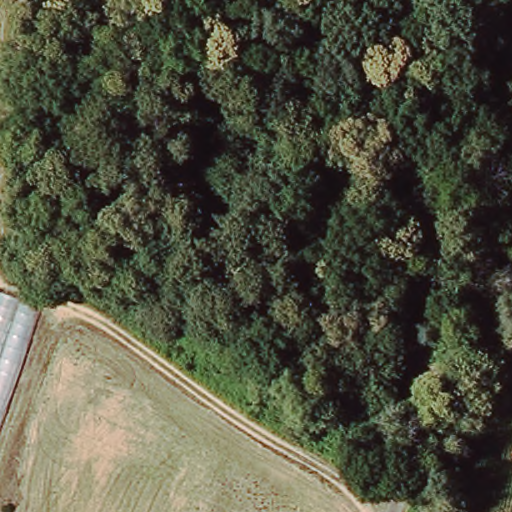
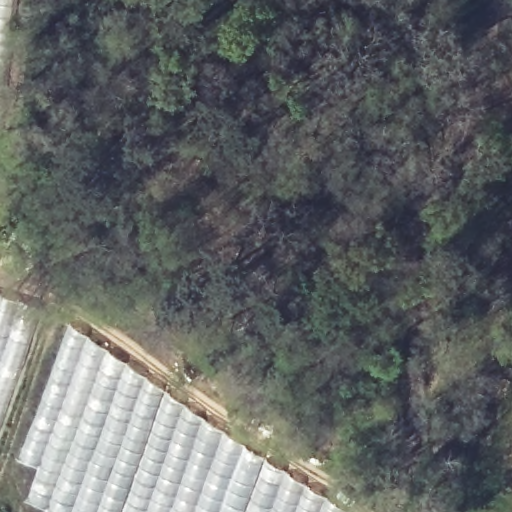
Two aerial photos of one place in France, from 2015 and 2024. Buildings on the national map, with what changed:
demolished [(14,0),(0,144),(0,0),(14,0)]
new [(39,307),(0,414),(0,295),(39,307)]
new [(70,321),(109,350),(165,389),(152,419),(119,512),(46,512),(47,509),(25,500),(39,466),(17,458),(70,321)]
new [(152,419),(165,389),(225,431),(265,458),(253,481),(242,512),(119,512),(152,419)]
new [(253,481),(265,458),(346,509),(345,512),(242,512),(253,481)]

